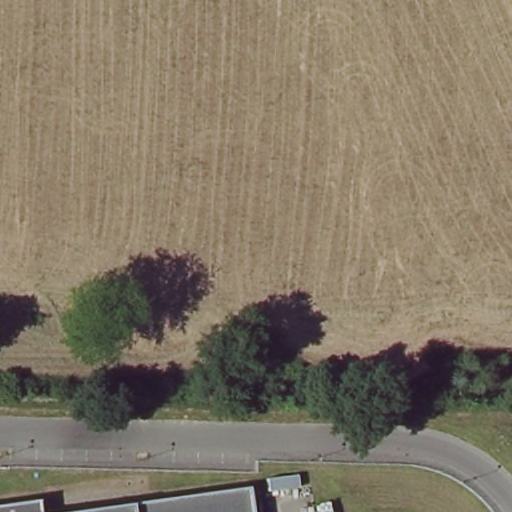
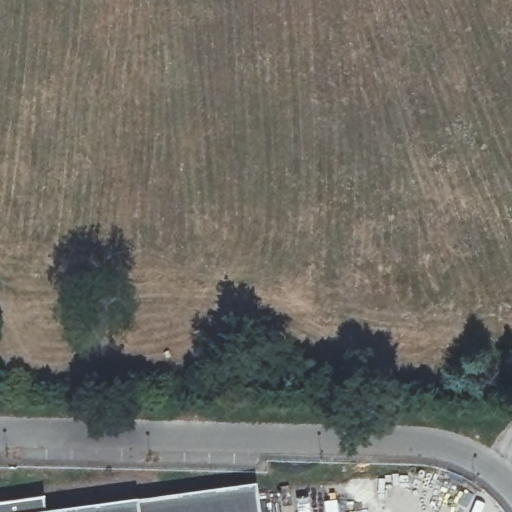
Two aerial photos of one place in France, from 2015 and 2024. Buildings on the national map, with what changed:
unchanged [(255,493),(258,512),(108,512),(255,493)]
unchanged [(44,504),(44,512),(0,512),(0,510),(44,504)]

